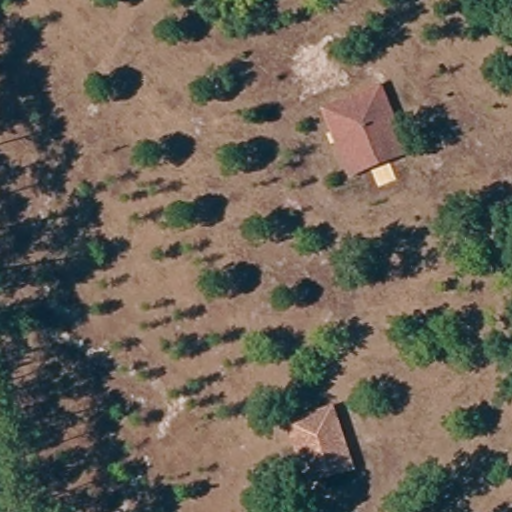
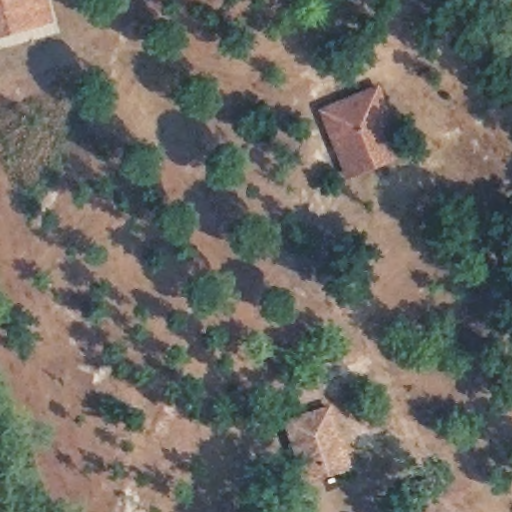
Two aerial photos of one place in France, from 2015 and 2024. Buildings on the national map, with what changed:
new [(0,36),(0,0),(50,0),(56,21),(0,36)]
unchanged [(342,171),(318,109),(373,85),(399,149),(383,155),(362,164),(342,171)]
unchanged [(322,411),(340,469),(297,483),(278,424),(322,411)]

